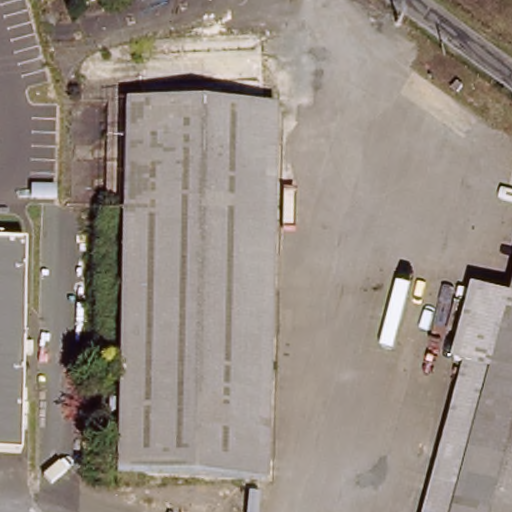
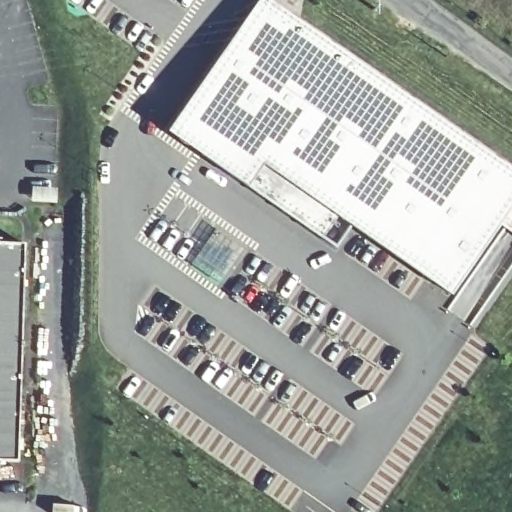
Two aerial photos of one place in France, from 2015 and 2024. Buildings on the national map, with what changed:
demolished [(43,0),(49,0),(43,2),(43,0)]
demolished [(82,6),(80,0),(103,0),(82,6)]
new [(452,296),(338,217),(320,237),(247,187),(170,133),(258,0),(272,0),(512,167),(512,230),(500,222),(452,296)]
demolished [(261,487),(232,486),(231,512),(159,512),(138,511),(140,482),(107,480),(113,222),(98,221),(98,104),(270,111),(261,487)]
unchanged [(27,244),(20,462),(0,461),(0,243),(27,244)]
demolished [(492,371),(464,363),(453,361),(472,287),(511,297),(492,371)]
demolished [(492,371),(454,512),(427,512),(464,363),(492,371)]

